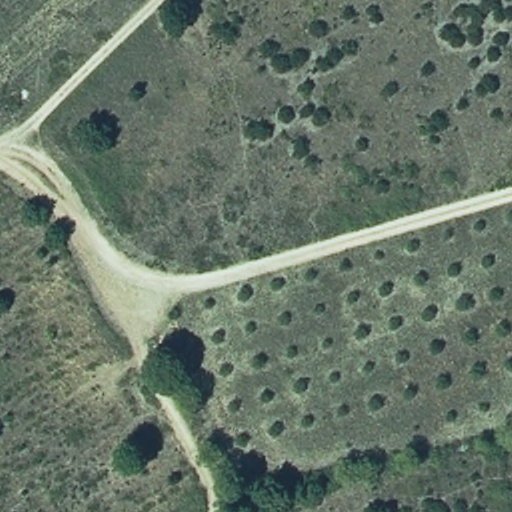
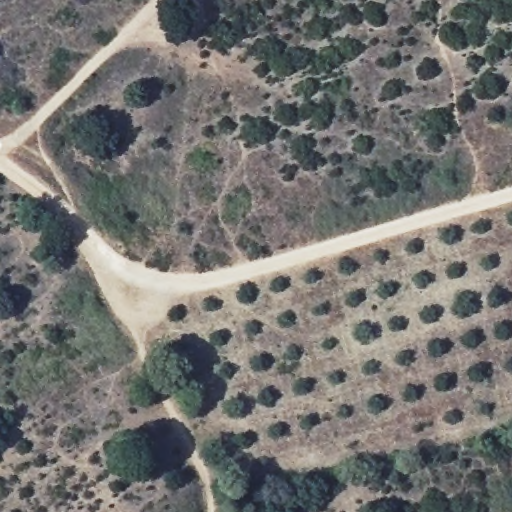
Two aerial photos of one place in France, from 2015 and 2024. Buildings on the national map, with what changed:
[]

